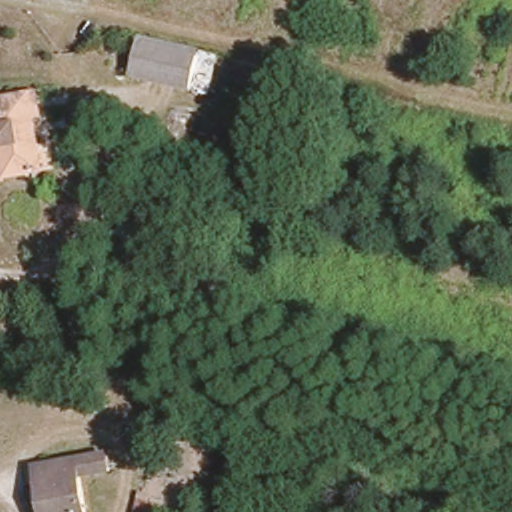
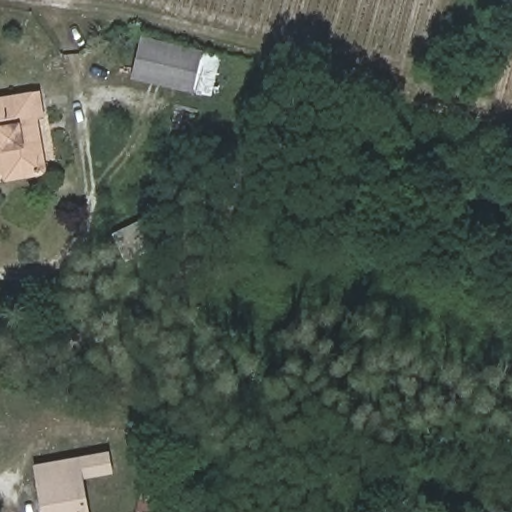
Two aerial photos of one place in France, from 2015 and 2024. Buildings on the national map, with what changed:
unchanged [(205,44),(196,86),(135,72),(143,31),(205,44)]
unchanged [(41,105),(36,109),(41,138),(45,161),(34,164),(4,169),(0,149),(0,93),(38,85),(41,105)]
unchanged [(113,448),(116,468),(86,474),(93,512),(45,512),(37,460),(60,456),(113,448)]

